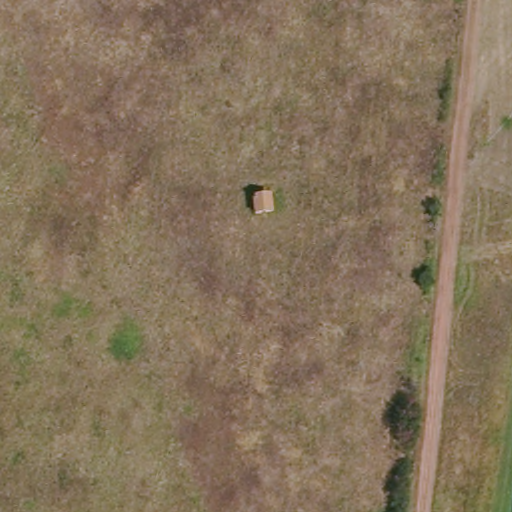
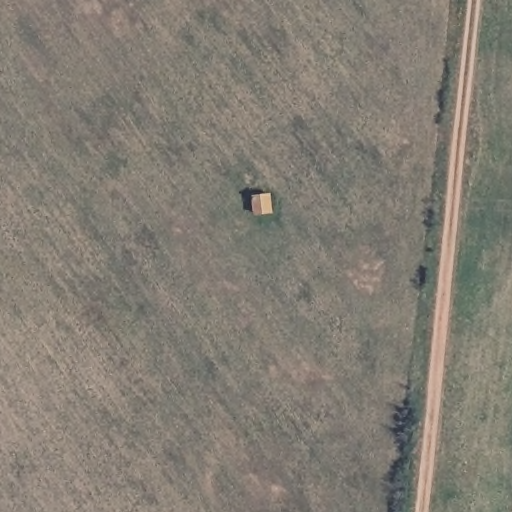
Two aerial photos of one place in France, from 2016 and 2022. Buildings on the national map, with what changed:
unchanged [(263,195),(266,212),(248,215),(245,198),(263,195)]

